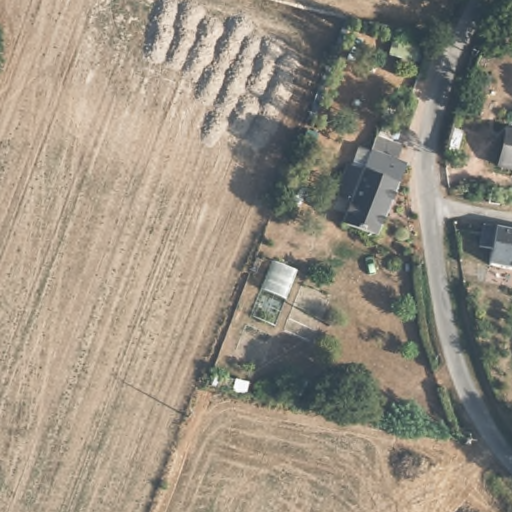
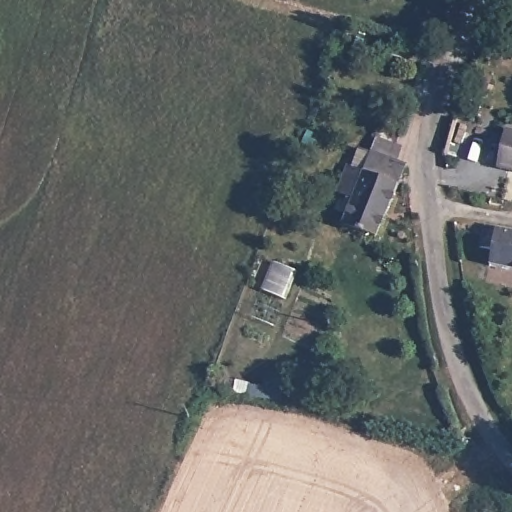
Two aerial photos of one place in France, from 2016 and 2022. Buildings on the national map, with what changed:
unchanged [(510,124),(512,125),(512,166),(500,163),(510,124)]
unchanged [(344,221),(345,219),(355,194),(339,188),(351,160),(366,165),(378,133),(406,144),(401,155),(411,159),(382,235),(344,221)]
unchanged [(493,245),(480,242),(483,220),(512,226),(512,265),(490,261),(493,245)]

